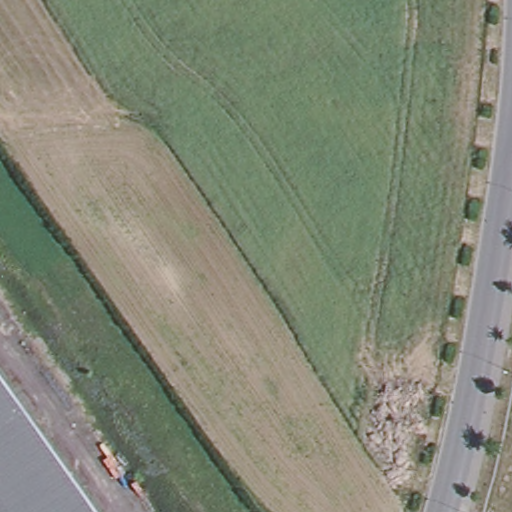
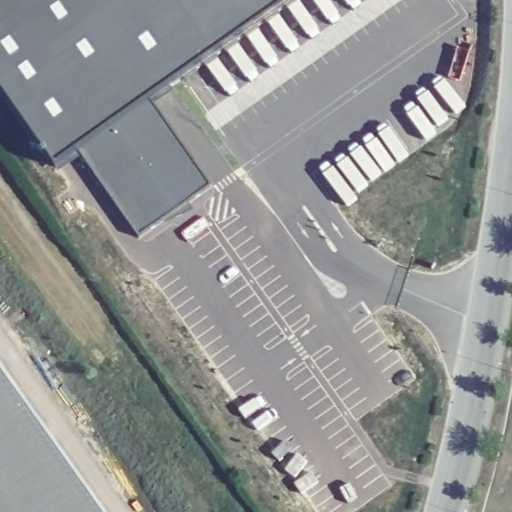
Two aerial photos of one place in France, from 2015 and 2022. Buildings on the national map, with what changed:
new [(0,0),(295,0),(152,101),(211,186),(140,235),(81,151),(55,169),(0,89),(0,0)]
unchanged [(0,378),(95,512),(0,512),(0,378)]

